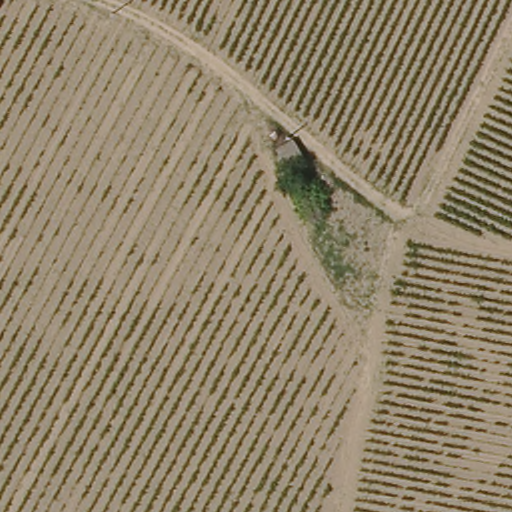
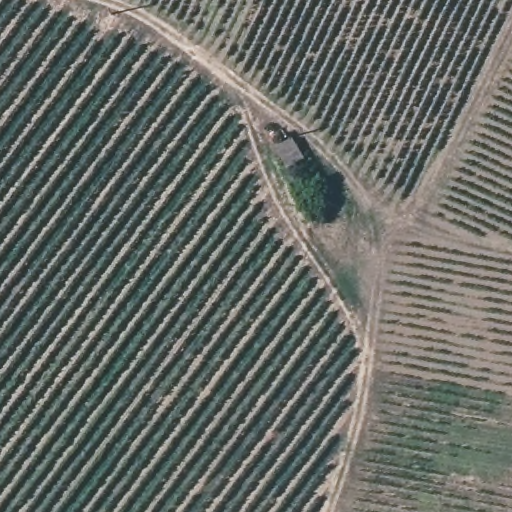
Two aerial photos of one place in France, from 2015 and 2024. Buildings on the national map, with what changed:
unchanged [(288,169),(273,148),(292,135),(305,155),(288,169)]

